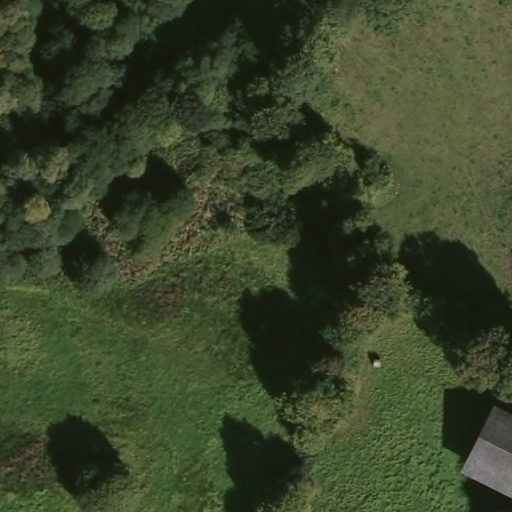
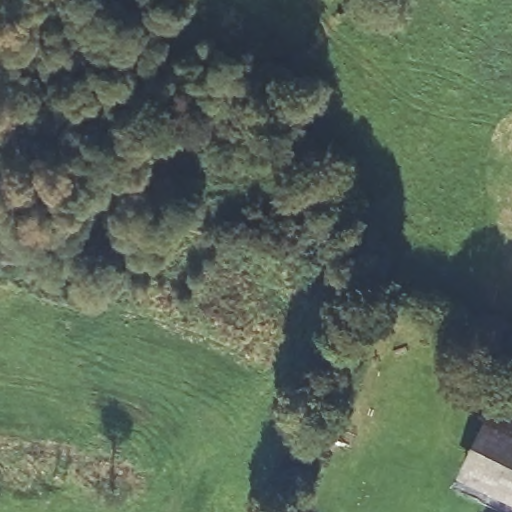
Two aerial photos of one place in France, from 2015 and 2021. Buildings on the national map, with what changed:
unchanged [(489,418),(512,430),(512,489),(464,465),(489,418)]

